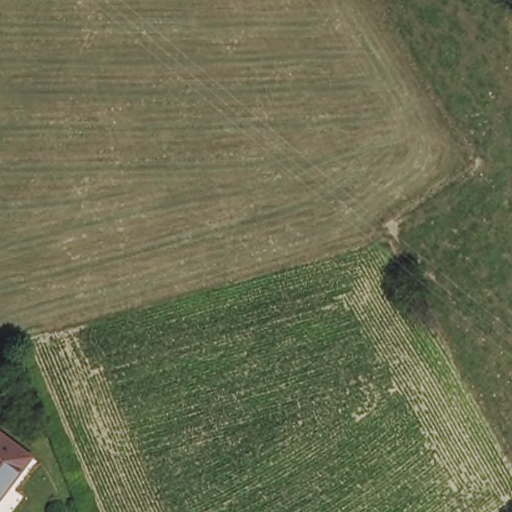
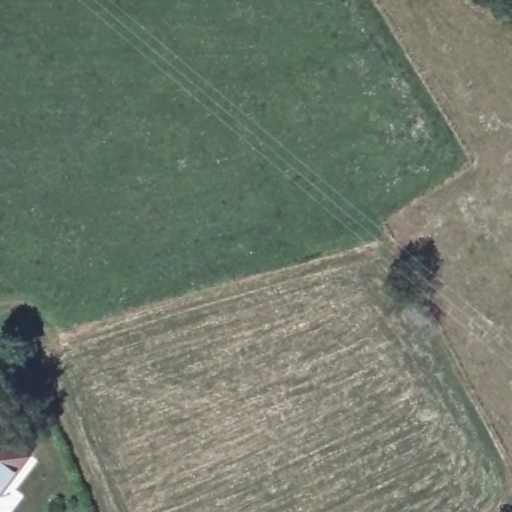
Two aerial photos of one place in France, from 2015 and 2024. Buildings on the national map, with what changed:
unchanged [(25,458),(0,491),(0,439),(25,458)]

